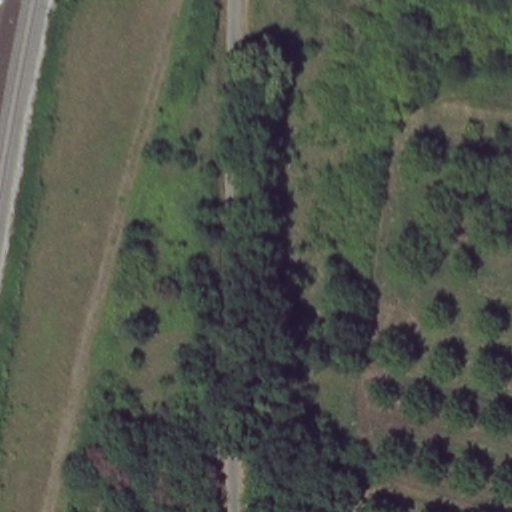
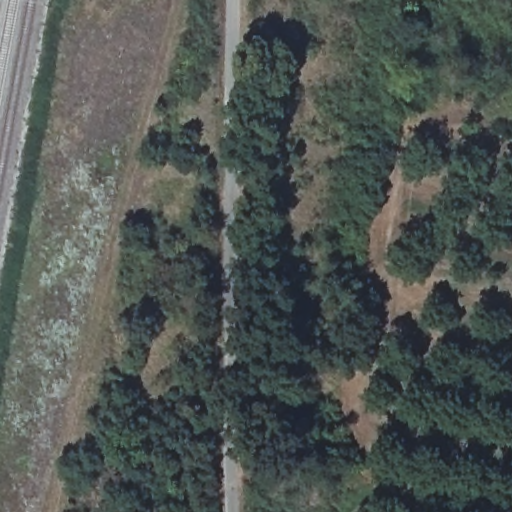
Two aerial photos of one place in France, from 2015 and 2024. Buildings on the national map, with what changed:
[]

